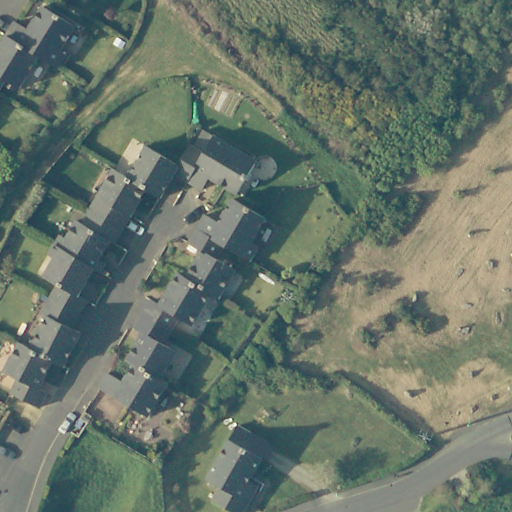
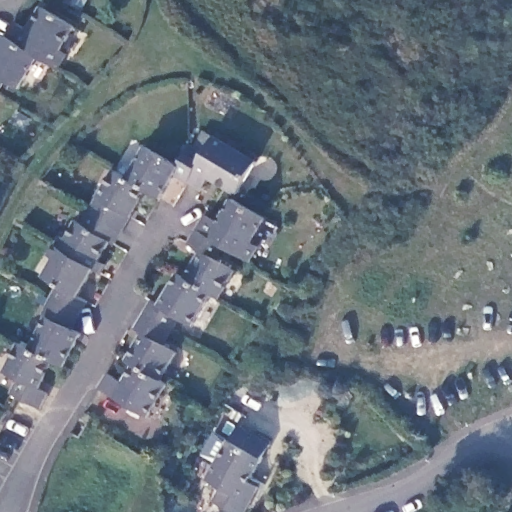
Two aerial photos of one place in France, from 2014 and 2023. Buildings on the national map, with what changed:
unchanged [(35,56),(3,36),(1,35),(10,21),(25,30),(39,8),(71,26),(57,50),(62,53),(54,68),(35,56)]
unchanged [(35,56),(15,89),(2,81),(0,84),(0,41),(3,36),(35,56)]
unchanged [(220,190),(205,183),(198,194),(184,185),(199,159),(210,140),(252,164),(231,197),(220,190)]
unchanged [(184,185),(170,177),(155,200),(141,192),(125,183),(142,152),(174,170),(186,151),(199,159),(184,185)]
unchanged [(141,192),(126,221),(119,233),(85,214),(110,173),(114,176),(125,183),(141,192)]
unchanged [(218,248),(194,234),(202,218),(216,226),(229,204),(261,222),(247,245),(255,250),(245,264),(218,248)]
unchanged [(119,233),(111,247),(106,245),(90,272),(52,250),(59,238),(66,242),(74,228),(76,229),(85,214),(119,233)]
unchanged [(206,297),(182,283),(199,255),(186,246),(194,234),(218,248),(210,262),(230,273),(213,301),(206,297)]
unchanged [(55,290),(42,281),(52,263),(47,260),(52,250),(90,272),(74,300),(83,306),(75,320),(47,305),(55,290)]
unchanged [(140,319),(147,305),(156,310),(175,279),(182,283),(206,297),(189,328),(174,320),(166,334),(140,319)]
unchanged [(27,354),(27,353),(45,321),(39,318),(47,305),(75,320),(67,333),(74,336),(56,369),(48,364),(27,354)]
unchanged [(132,369),(124,365),(140,338),(131,332),(140,319),(166,334),(158,348),(171,356),(155,383),(132,369)]
unchanged [(27,353),(27,354),(48,364),(32,393),(41,398),(34,412),(9,398),(15,384),(1,376),(16,348),(27,353)]
unchanged [(143,417),(96,391),(104,378),(121,387),(132,369),(155,383),(163,387),(143,417)]
unchanged [(245,480),(255,487),(240,512),(227,512),(211,502),(220,487),(207,479),(236,433),(264,449),(245,480)]

